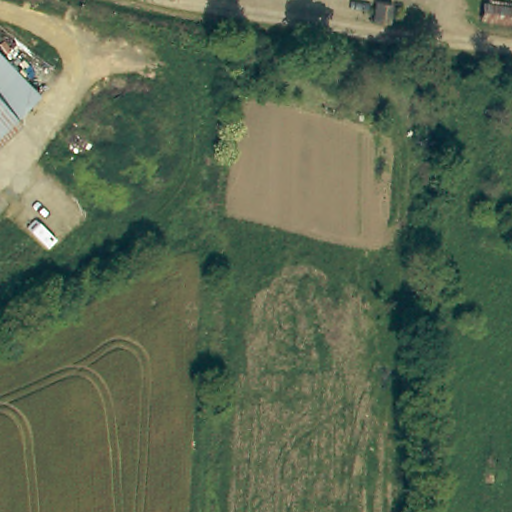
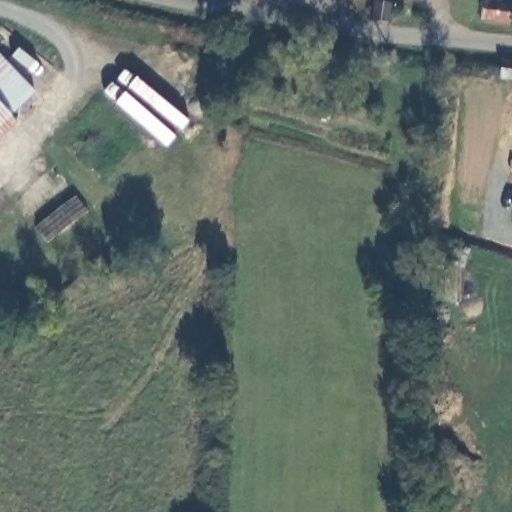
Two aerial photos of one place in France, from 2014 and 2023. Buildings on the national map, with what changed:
unchanged [(389,6),(386,21),(370,19),(372,4),(389,6)]
unchanged [(33,82),(0,117),(0,51),(33,82)]
unchanged [(493,73),(512,75),(512,91),(492,88),(493,73)]

